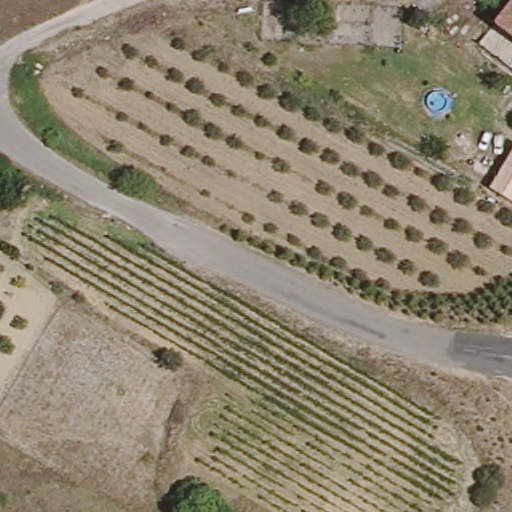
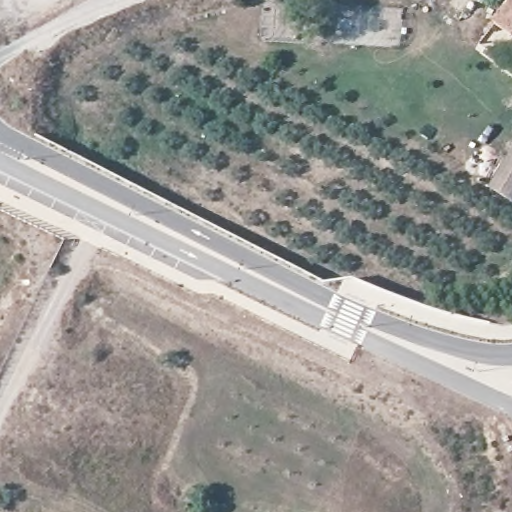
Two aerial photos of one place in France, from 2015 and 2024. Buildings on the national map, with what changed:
unchanged [(505,17),(511,8),(512,9),(512,71),(481,47),(486,40),(505,17)]
unchanged [(507,144),(512,147),(512,185),(501,203),(479,189),(507,144)]

